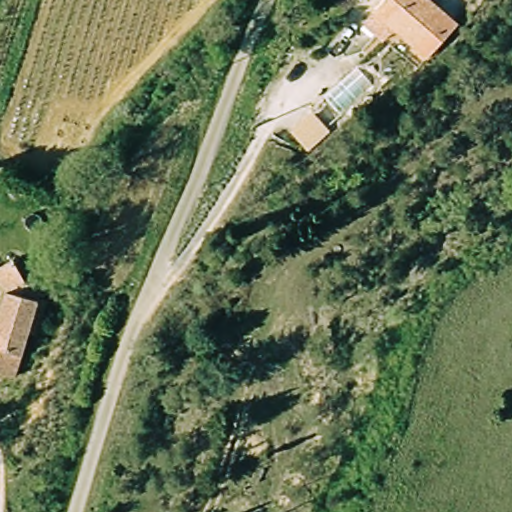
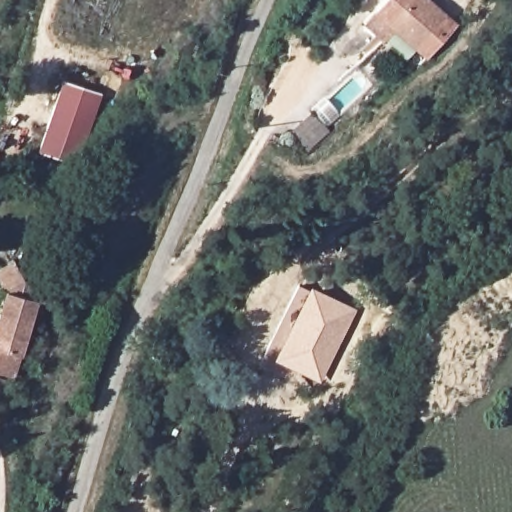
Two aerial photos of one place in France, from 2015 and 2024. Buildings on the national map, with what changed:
unchanged [(418,56),(405,41),(400,35),(386,45),(368,20),(379,10),(388,0),(425,0),(432,7),(435,10),(450,25),(418,56)]
unchanged [(432,7),(425,0),(438,0),(432,7)]
new [(76,166),(38,153),(61,82),(103,95),(76,166)]
unchanged [(314,114),(333,132),(305,155),(285,139),(314,114)]
unchanged [(5,287),(7,260),(29,262),(28,286),(44,295),(8,379),(0,376),(0,312),(10,290),(5,287)]
new [(356,309),(320,382),(279,362),(275,373),(256,364),(297,282),(308,288),(310,285),(356,309)]

